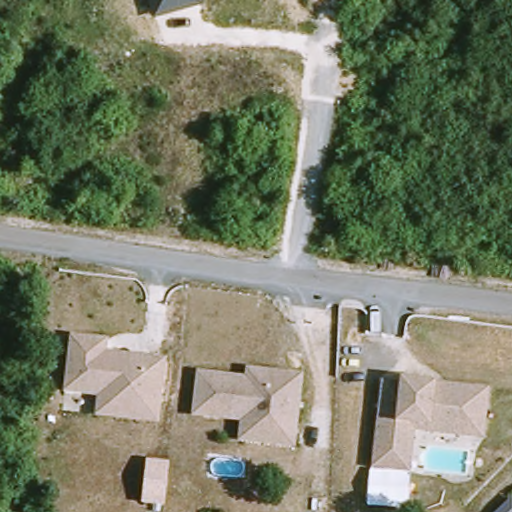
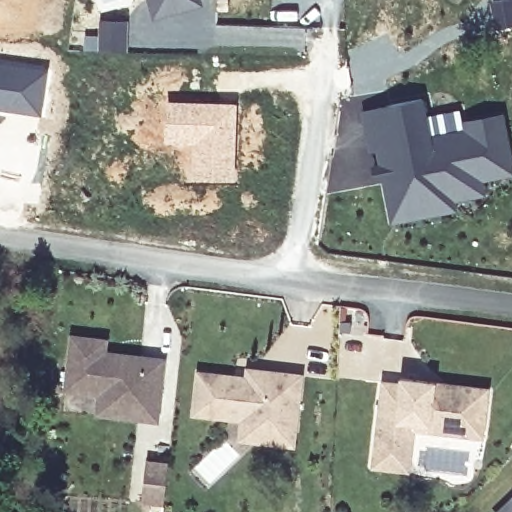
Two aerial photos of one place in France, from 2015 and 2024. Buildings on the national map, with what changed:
unchanged [(155,19),(150,0),(201,0),(202,7),(155,19)]
new [(100,20),(127,20),(127,35),(127,50),(100,50),(100,35),(100,20)]
new [(40,116),(0,110),(0,60),(47,66),(40,116)]
new [(380,149),(398,145),(390,104),(421,97),(430,140),(468,132),(466,123),(500,116),(510,168),(445,181),(449,201),(415,208),(413,199),(391,204),(386,177),(377,179),(374,165),(383,164),(380,149)]
new [(166,99),(236,102),(235,181),(190,180),(191,145),(164,144),(166,99)]
new [(390,104),(398,145),(380,149),(371,150),(363,109),(390,104)]
new [(413,199),(415,208),(449,201),(445,181),(510,168),(511,173),(482,179),(485,193),(454,198),(456,208),(395,221),(391,204),(413,199)]
unchanged [(162,399),(114,394),(102,392),(74,389),(69,388),(70,369),(75,334),(110,338),(108,350),(117,352),(137,354),(156,356),(167,357),(162,399)]
unchanged [(304,373),(301,403),(298,424),(269,421),(245,418),(196,412),(197,400),(201,370),(236,374),(237,374),(249,376),(250,367),(304,373)]
unchanged [(411,441),(373,436),(380,379),(398,381),(399,376),(433,381),(487,387),(486,399),(485,407),(483,419),(481,437),(463,435),(445,433),(441,432),(412,429),(411,441)]
unchanged [(160,419),(100,412),(101,404),(102,392),(114,394),(162,399),(160,419)]
unchanged [(296,444),(242,438),(242,435),(245,418),(269,421),(298,424),(296,444)]
unchanged [(408,471),(370,466),(373,436),(411,441),(408,471)]
new [(146,459),(167,461),(165,477),(162,503),(141,501),(143,489),(146,459)]
unchanged [(510,495),(512,497),(512,512),(494,512),(510,495)]

